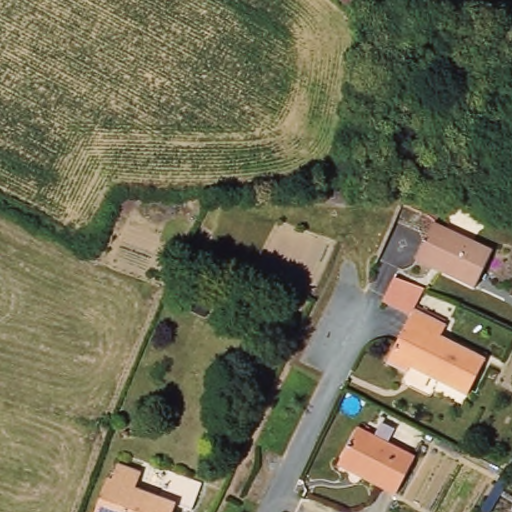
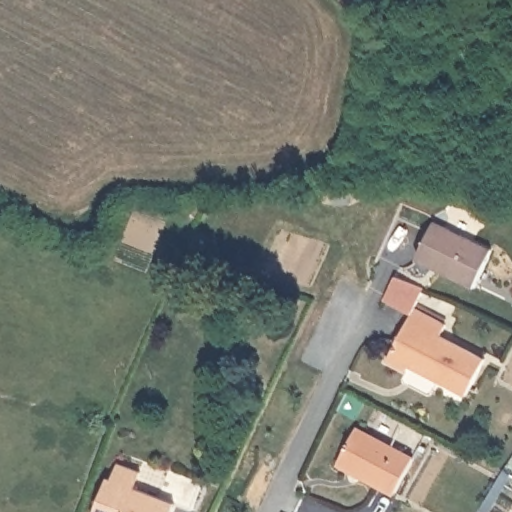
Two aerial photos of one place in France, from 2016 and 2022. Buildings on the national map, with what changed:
unchanged [(372,1),(370,0),(373,0),(372,1)]
unchanged [(473,291),(417,261),(437,225),(493,255),(473,291)]
unchanged [(439,340),(482,361),(466,396),(410,369),(406,377),(386,367),(411,313),(384,301),(396,277),(425,290),(413,314),(444,329),(439,340)]
unchanged [(394,496),(336,465),(355,428),(412,459),(394,496)]
unchanged [(187,512),(175,507),(172,512),(95,512),(109,479),(112,480),(119,465),(144,476),(137,493),(159,502),(169,475),(202,489),(192,512),(187,512)]

